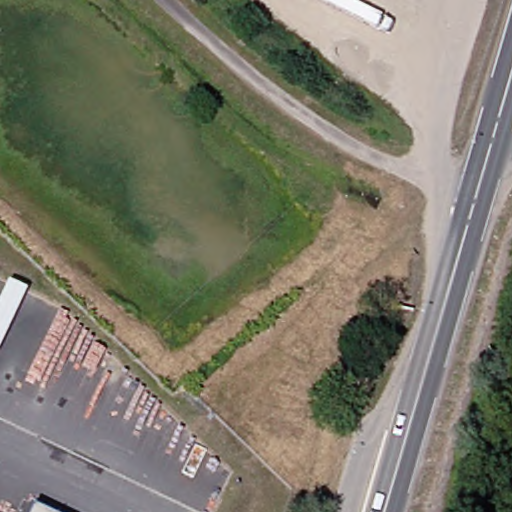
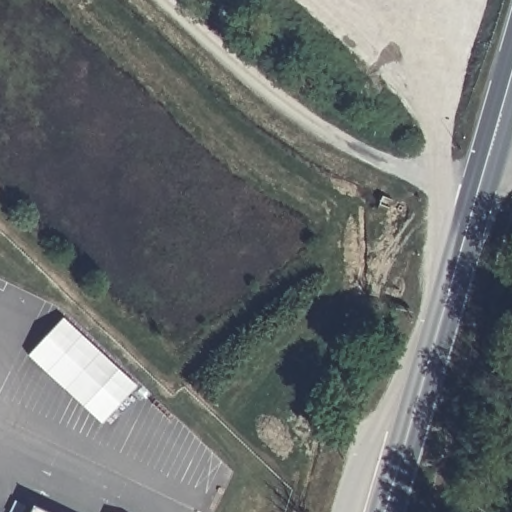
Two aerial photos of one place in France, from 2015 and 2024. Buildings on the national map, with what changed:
new [(137,386),(102,423),(29,355),(63,318),(137,386)]
unchanged [(47,512),(30,512),(33,505),(47,512)]

